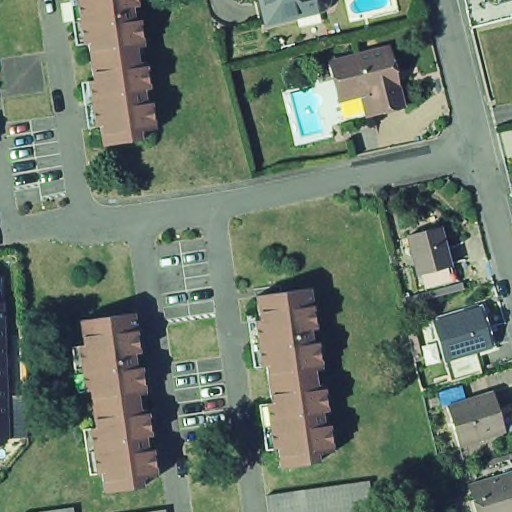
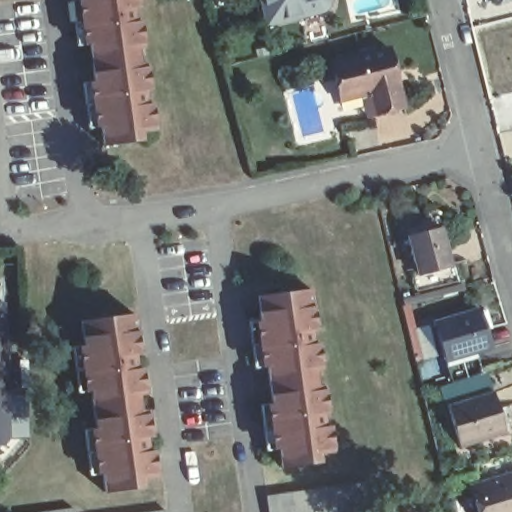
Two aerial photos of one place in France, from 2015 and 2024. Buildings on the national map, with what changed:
unchanged [(92,100),(90,77),(95,77),(90,39),(83,40),(80,17),(86,16),(84,0),(139,0),(139,2),(133,3),(135,17),(141,16),(145,43),(130,45),(131,61),(147,58),(150,85),(145,85),(146,99),(152,97),(156,124),(140,127),(141,135),(104,140),(98,99),(92,100)]
unchanged [(261,0),(328,0),(326,3),(325,5),(321,7),(314,10),(266,22),(261,0)]
unchanged [(388,46),(402,107),(373,114),(367,92),(343,97),(334,59),(388,46)]
unchanged [(455,274),(438,277),(438,280),(422,282),(415,256),(413,246),(427,242),(427,240),(446,236),(448,245),(455,274)]
unchanged [(8,444),(0,445),(0,276),(8,444)]
unchanged [(317,330),(313,330),(314,345),(320,344),(323,370),(308,372),(310,386),(325,384),(328,411),(323,412),(325,426),(330,425),(334,452),(318,454),(319,462),(280,467),(276,427),(270,427),(268,405),(272,405),(268,367),(263,367),(260,343),(265,342),(259,297),(312,290),(317,330)]
unchanged [(432,322),(478,309),(489,347),(443,360),(432,322)]
unchanged [(140,346),(134,346),(137,369),(143,368),(146,395),(131,397),(133,412),(148,410),(152,437),(146,437),(149,458),(155,458),(158,476),(141,478),(142,487),(105,492),(102,473),(97,473),(91,427),(96,427),(91,390),(86,391),(80,346),(85,345),(82,322),(135,314),(140,346)]
unchanged [(445,411),(491,397),(503,437),(457,451),(445,411)]
unchanged [(512,470),(512,512),(485,512),(476,481),(512,470)]
unchanged [(267,495),(369,482),(372,508),(346,512),(270,512),(267,495)]
unchanged [(77,507),(78,512),(41,512),(77,507)]
unchanged [(168,509),(168,512),(148,512),(168,509)]

